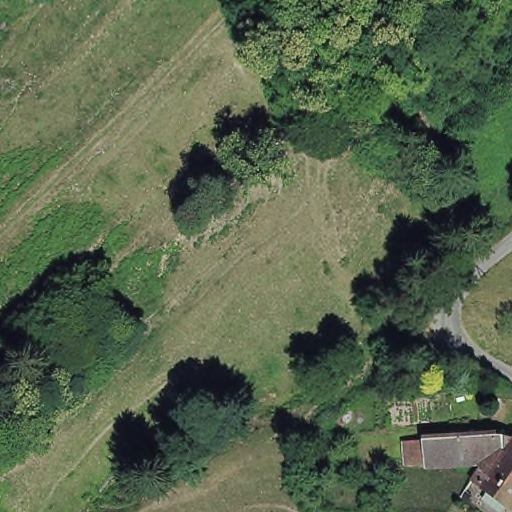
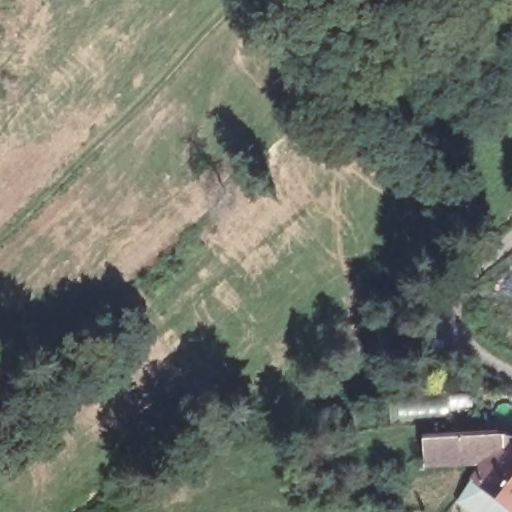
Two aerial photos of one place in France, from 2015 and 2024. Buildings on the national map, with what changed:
unchanged [(470,484),(480,468),(481,466),(423,468),(423,442),(497,439),(499,436),(512,443),(512,512),(509,512),(480,491),(470,484)]

